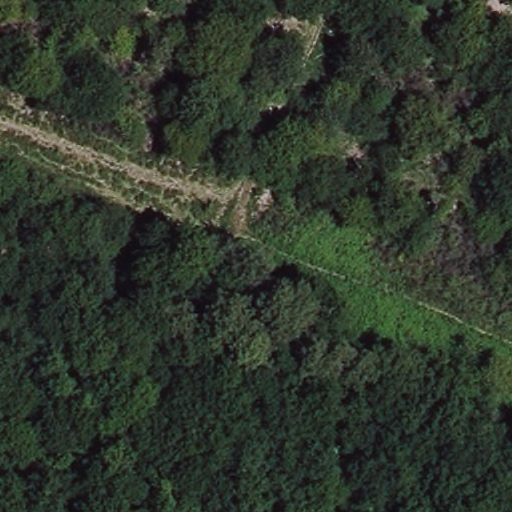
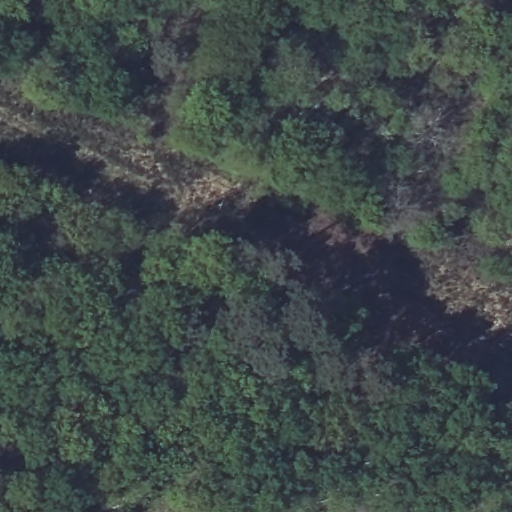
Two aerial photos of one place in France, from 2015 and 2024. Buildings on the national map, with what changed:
[]

